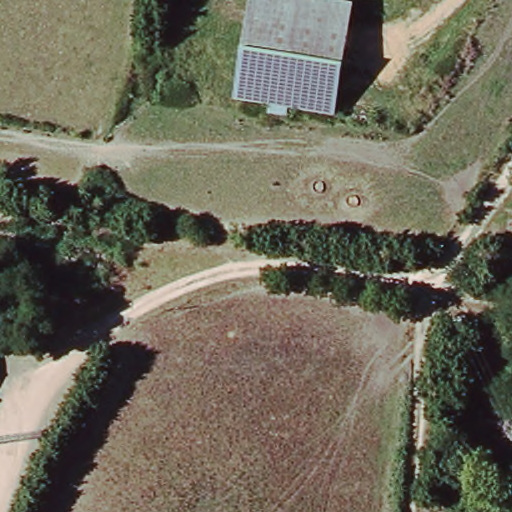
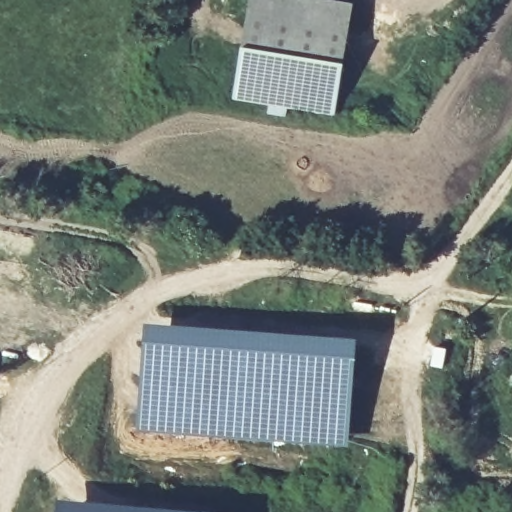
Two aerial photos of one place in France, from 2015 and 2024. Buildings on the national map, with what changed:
unchanged [(354,4),(336,116),(232,99),(249,0),(332,0),(354,4)]
new [(349,449),(138,432),(146,325),(356,341),(349,449)]
new [(67,512),(53,512),(53,511),(67,512)]

